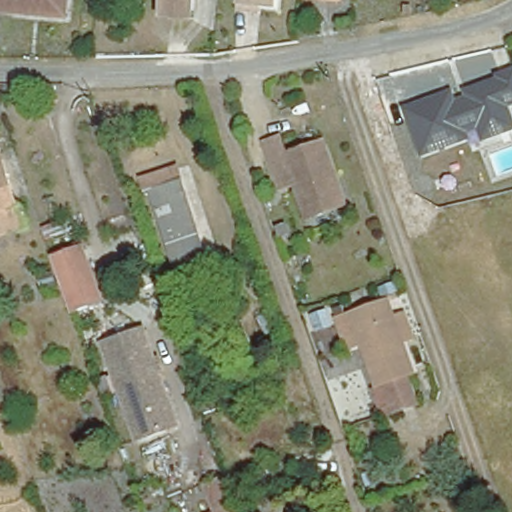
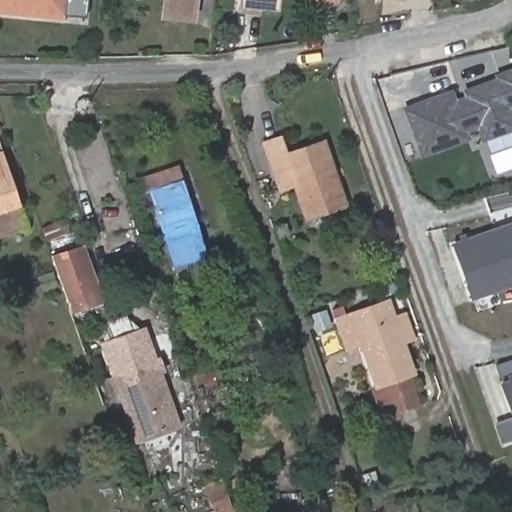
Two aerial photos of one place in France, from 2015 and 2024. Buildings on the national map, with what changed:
unchanged [(0,9),(0,0),(68,0),(67,16),(0,9)]
unchanged [(169,15),(170,0),(200,0),(198,18),(169,15)]
unchanged [(236,10),(237,0),(280,0),(278,14),(236,10)]
unchanged [(482,143),(477,130),(467,135),(470,140),(422,157),(405,107),(452,91),(457,100),(465,97),(464,88),(495,79),(493,72),(512,67),(512,133),(482,143)]
unchanged [(287,195),(272,149),(286,144),(292,161),(330,147),(351,210),(312,223),(304,198),(290,202),(287,195)]
unchanged [(0,236),(0,160),(22,229),(0,236)]
unchanged [(180,181),(207,262),(177,272),(151,190),(180,181)]
unchanged [(285,222),(287,231),(279,233),(277,225),(285,222)]
new [(512,224),(512,278),(495,230),(512,224)]
new [(495,230),(512,278),(512,284),(472,298),(453,245),(495,230)]
unchanged [(56,287),(63,285),(59,273),(80,266),(92,298),(64,307),(56,287)]
unchanged [(351,351),(341,321),(357,316),(395,302),(400,317),(411,313),(420,339),(408,343),(418,374),(414,376),(425,406),(400,415),(388,418),(378,387),(382,386),(367,345),(351,351)]
unchanged [(140,332),(160,385),(174,423),(135,438),(122,403),(101,346),(140,332)]
new [(512,382),(512,409),(503,385),(512,382)]
unchanged [(375,472),(379,483),(367,487),(363,476),(375,472)]
unchanged [(227,480),(238,512),(220,512),(210,485),(227,480)]

